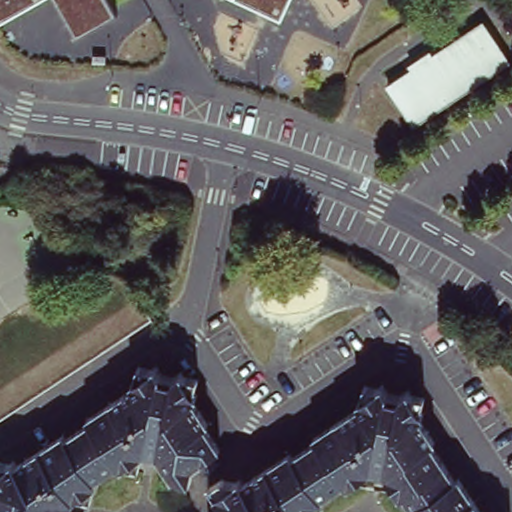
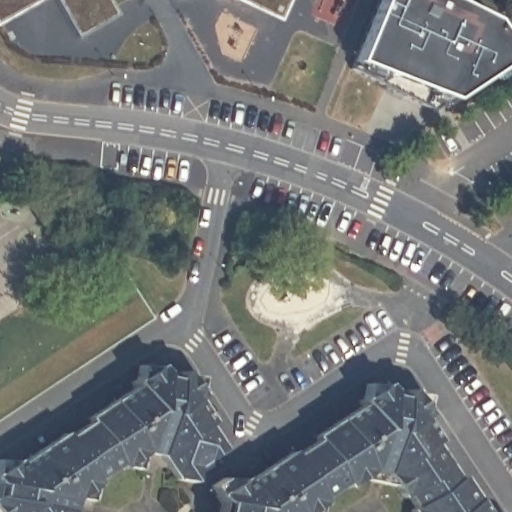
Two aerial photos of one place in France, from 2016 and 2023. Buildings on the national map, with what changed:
unchanged [(33,1),(0,20),(0,0),(35,0),(33,1)]
unchanged [(118,11),(77,34),(58,0),(112,0),(118,11)]
unchanged [(256,0),(297,0),(291,13),(256,0)]
new [(512,50),(512,59),(435,109),(350,67),(379,0),(452,0),(495,21),(512,50)]
demolished [(485,20),(511,59),(416,122),(391,84),(485,20)]
unchanged [(162,452),(149,449),(126,463),(124,460),(100,476),(102,480),(79,495),(76,508),(79,512),(0,512),(0,468),(18,456),(24,464),(141,385),(137,377),(160,362),(165,369),(179,373),(186,368),(201,390),(194,396),(224,443),(176,474),(162,452)]
unchanged [(375,467),(351,482),(348,479),(325,494),(327,497),(305,512),(222,512),(224,511),(225,497),(221,491),(245,475),(250,483),(368,406),(362,398),(387,381),(392,388),(403,391),(412,385),(428,410),(420,416),(483,512),(416,512),(388,469),(375,467)]

